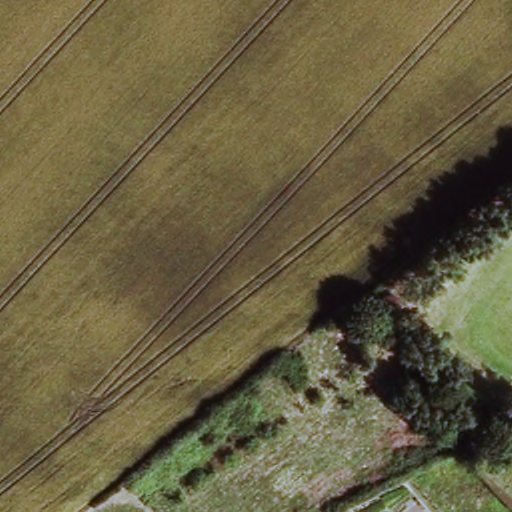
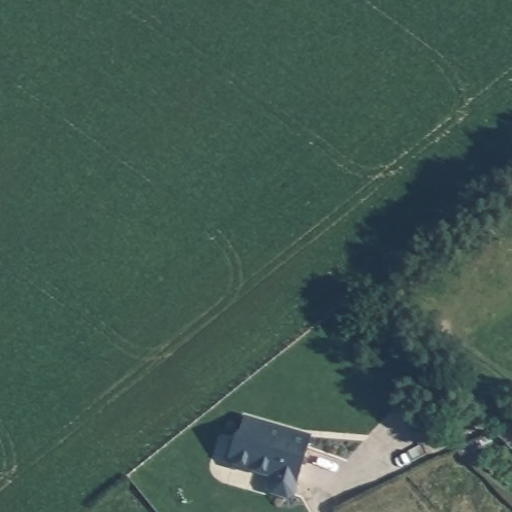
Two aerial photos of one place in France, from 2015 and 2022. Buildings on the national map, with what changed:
new [(311,437),(298,484),(296,497),(291,500),(269,493),(268,489),(270,479),(231,468),(226,458),(231,438),(236,440),(243,415),(311,437)]

